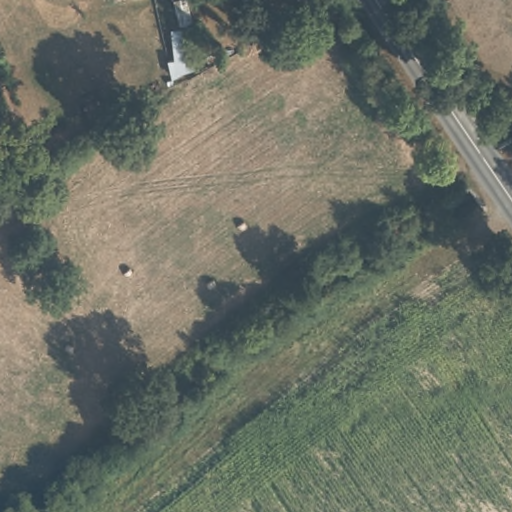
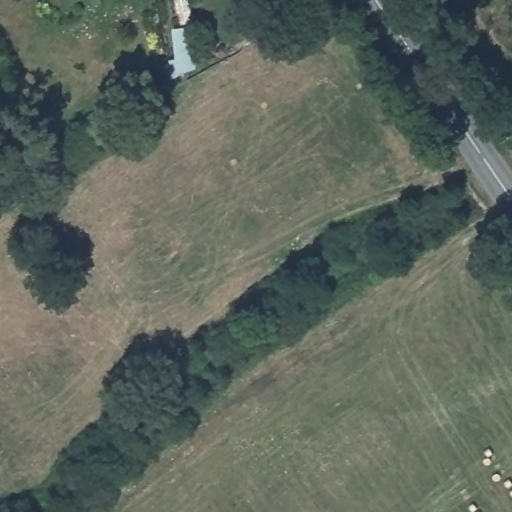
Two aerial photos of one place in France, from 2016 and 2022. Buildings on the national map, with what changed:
unchanged [(168,30),(177,27),(172,0),(189,0),(193,24),(200,53),(174,62),(168,30)]

